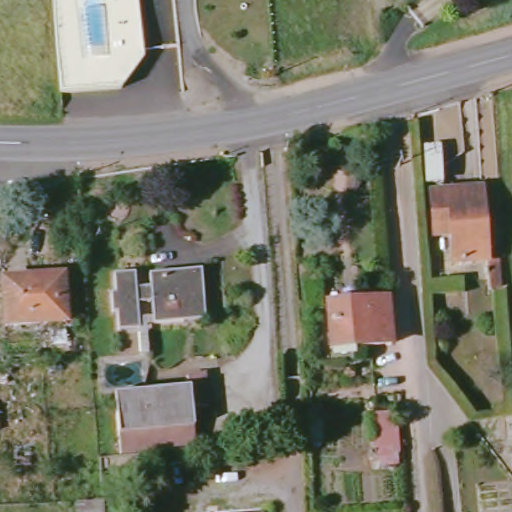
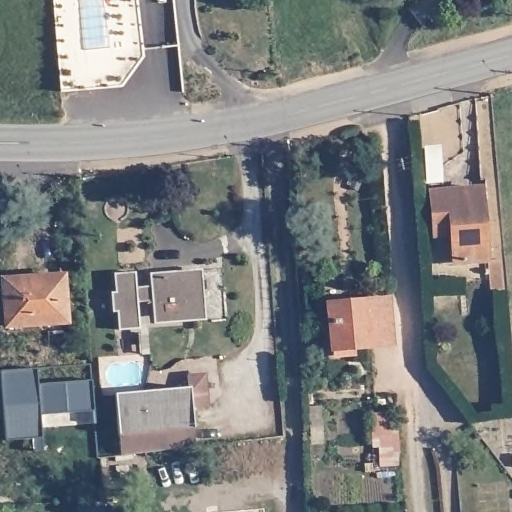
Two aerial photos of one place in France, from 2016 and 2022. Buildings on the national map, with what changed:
unchanged [(499,290),(482,290),(483,265),(450,266),(446,229),(431,229),(428,195),(480,191),(486,258),(498,258),(499,290)]
unchanged [(128,273),(128,288),(143,287),(142,275),(195,272),(197,320),(179,321),(179,326),(147,327),(145,303),(132,303),(132,332),(110,332),(108,312),(104,312),(102,290),(107,289),(105,273),(128,273)]
unchanged [(65,323),(1,329),(0,316),(0,282),(61,277),(65,323)]
unchanged [(390,299),(393,346),(332,351),(328,304),(390,299)]
new [(1,371),(37,370),(38,385),(92,381),(93,410),(38,413),(42,450),(34,450),(32,437),(6,439),(1,371)]
unchanged [(113,439),(111,396),(182,391),(182,380),(200,379),(203,415),(188,416),(188,432),(113,439)]
unchanged [(361,412),(397,407),(400,455),(366,456),(361,412)]
unchanged [(113,439),(188,432),(190,451),(115,460),(113,439)]

